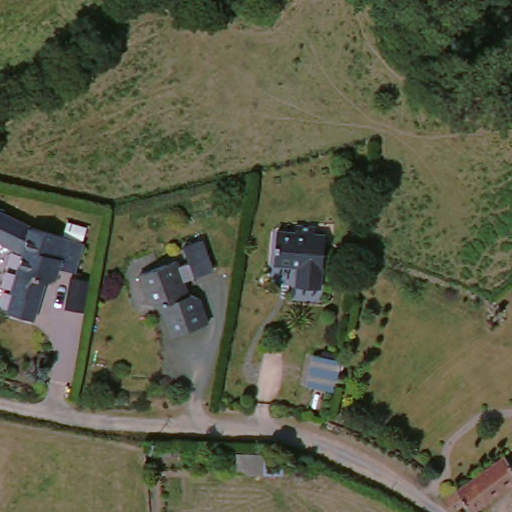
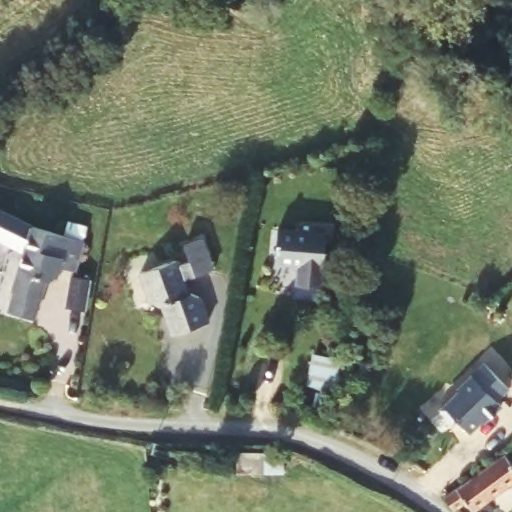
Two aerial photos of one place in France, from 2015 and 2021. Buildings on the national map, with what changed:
unchanged [(33,226),(83,237),(76,267),(60,264),(59,270),(44,279),(36,315),(11,309),(16,288),(14,285),(21,248),(0,239),(0,211),(33,226)]
unchanged [(294,231),(296,223),(316,226),(314,233),(327,235),(319,289),(293,286),(296,266),(273,263),(278,228),(294,231)]
unchanged [(185,246),(204,241),(214,274),(182,283),(186,297),(196,294),(208,326),(171,338),(162,310),(148,300),(140,272),(177,261),(178,265),(189,262),(185,246)]
unchanged [(90,278),(84,308),(67,303),(73,274),(90,278)]
unchanged [(329,370),(320,400),(294,393),(303,362),(329,370)]
new [(459,390),(458,388),(485,363),(509,389),(497,399),(502,405),(469,433),(444,405),(459,390)]
unchanged [(452,498),(483,475),(508,457),(512,463),(512,489),(480,512),(471,512),(468,508),(462,512),(453,512),(446,502),(452,498)]

